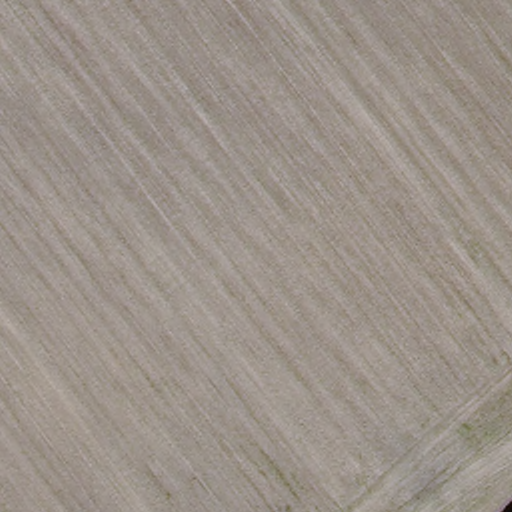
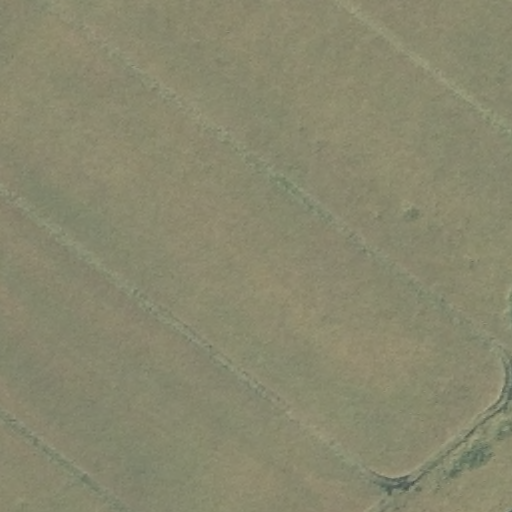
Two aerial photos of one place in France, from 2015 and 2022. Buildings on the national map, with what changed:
[]

